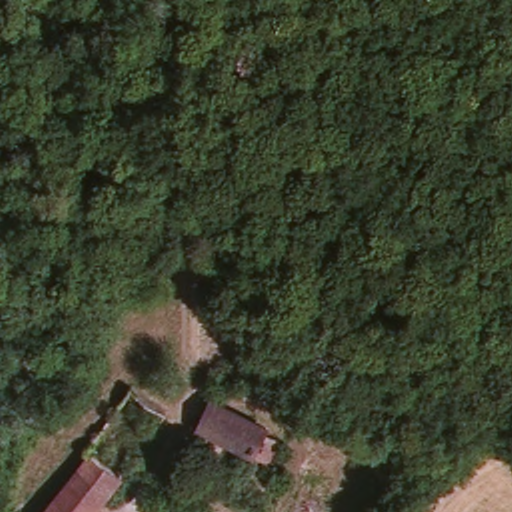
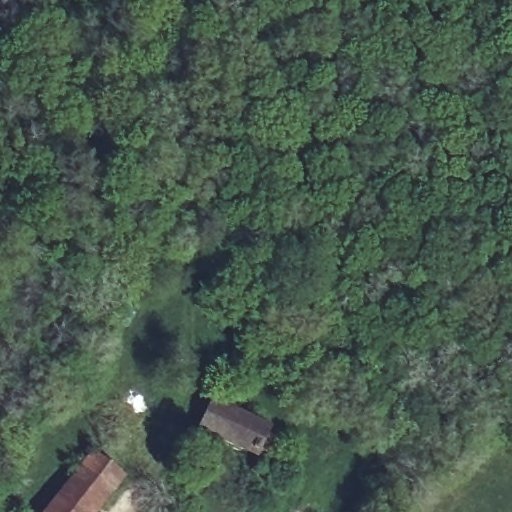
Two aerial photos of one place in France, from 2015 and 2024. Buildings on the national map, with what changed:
unchanged [(260,460),(201,425),(215,399),(269,430),(272,435),(285,441),(277,459),(285,463),(274,485),(250,472),(260,460)]
unchanged [(90,453),(123,481),(99,512),(43,512),(90,453)]

